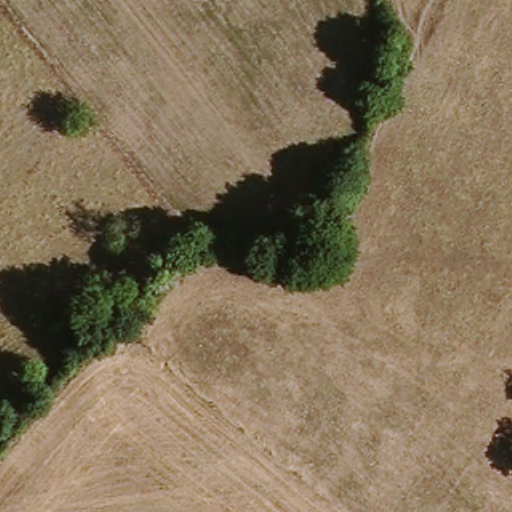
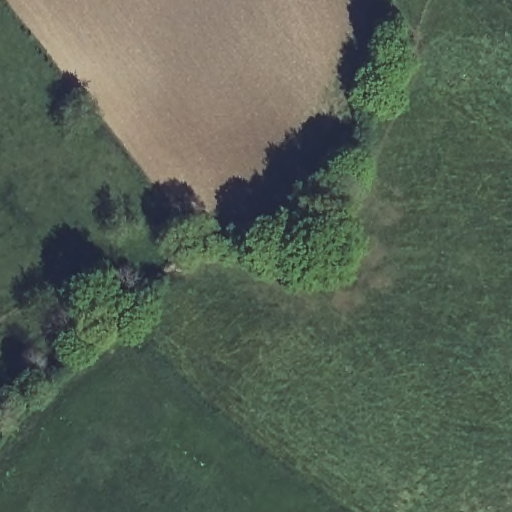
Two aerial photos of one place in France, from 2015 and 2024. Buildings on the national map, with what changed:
[]

